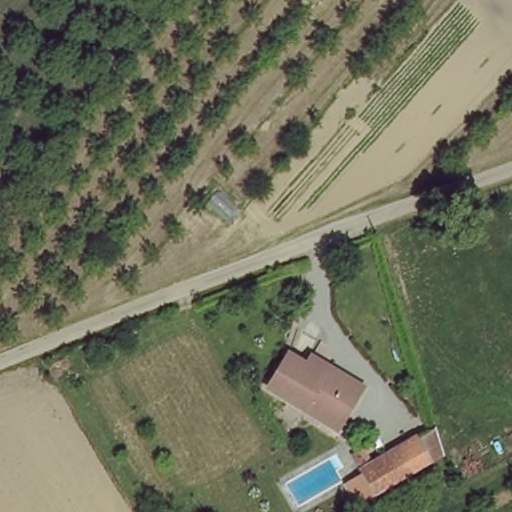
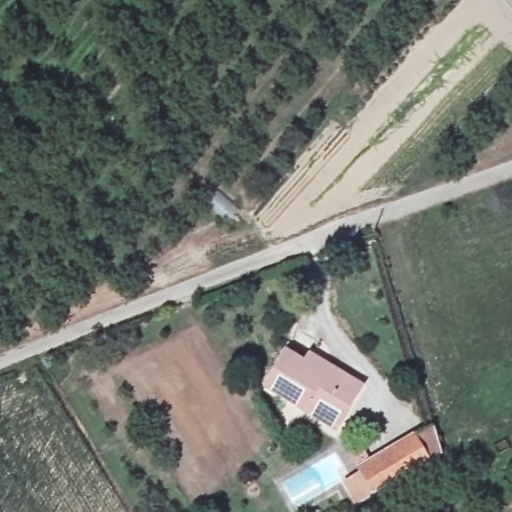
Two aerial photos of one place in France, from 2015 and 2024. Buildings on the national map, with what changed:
unchanged [(321,417),(267,381),(287,349),(301,357),(312,348),(328,360),(363,383),(347,409),(336,427),(321,417)]
unchanged [(357,465),(411,435),(429,425),(439,455),(426,462),(372,493),(357,465)]

